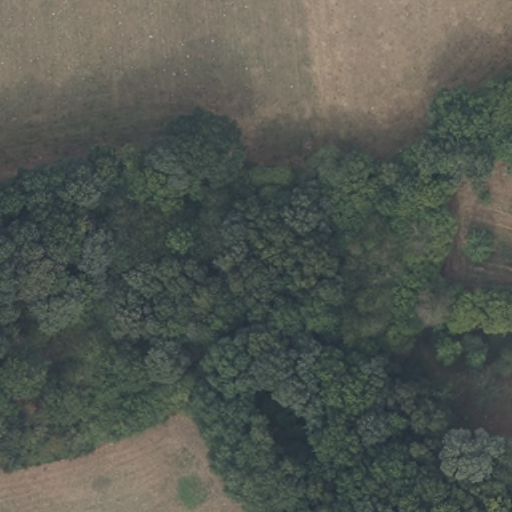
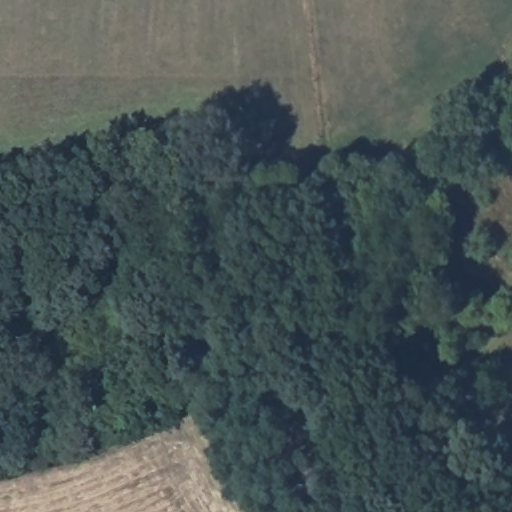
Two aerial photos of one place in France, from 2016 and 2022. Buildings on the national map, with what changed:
[]

